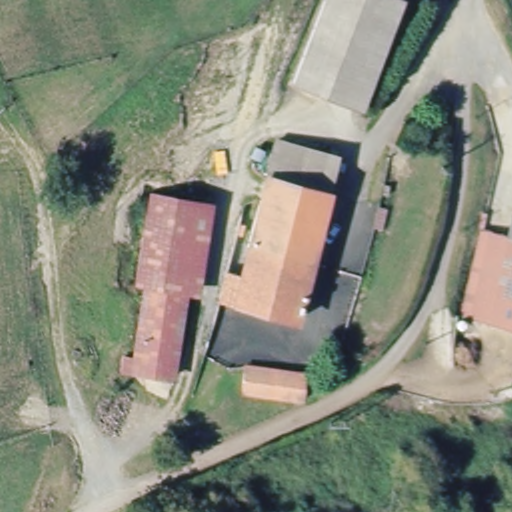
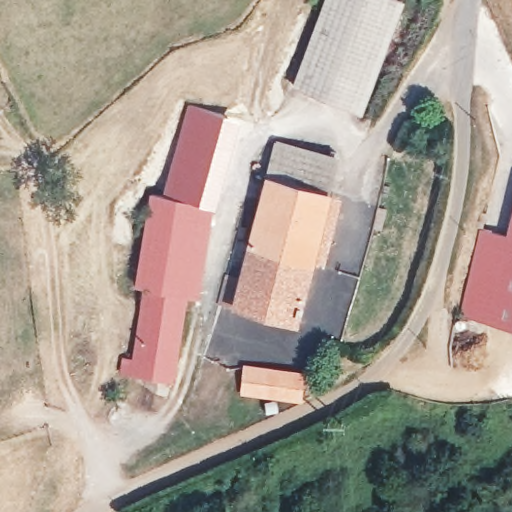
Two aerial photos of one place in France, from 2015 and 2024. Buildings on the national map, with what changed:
unchanged [(333,0),(411,0),(365,104),(299,75),(333,0)]
unchanged [(299,75),(365,104),(358,120),(292,91),(299,75)]
new [(241,119),(215,200),(199,198),(165,193),(189,105),(241,119)]
unchanged [(278,140),(340,157),(330,196),(267,178),(278,140)]
unchanged [(295,321),(233,305),(267,178),(330,196),(295,321)]
unchanged [(146,191),(199,198),(185,295),(173,377),(133,374),(145,290),(132,289),(134,272),(146,191)]
unchanged [(203,296),(185,295),(199,198),(215,200),(203,296)]
unchanged [(512,329),(466,316),(491,227),(512,233),(512,329)]
unchanged [(307,369),(304,398),(241,394),(244,364),(307,369)]

